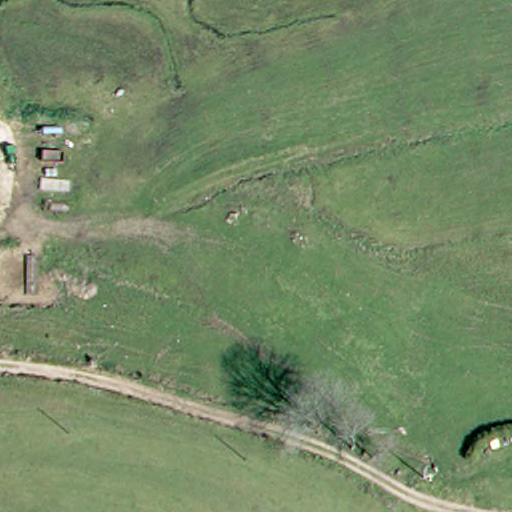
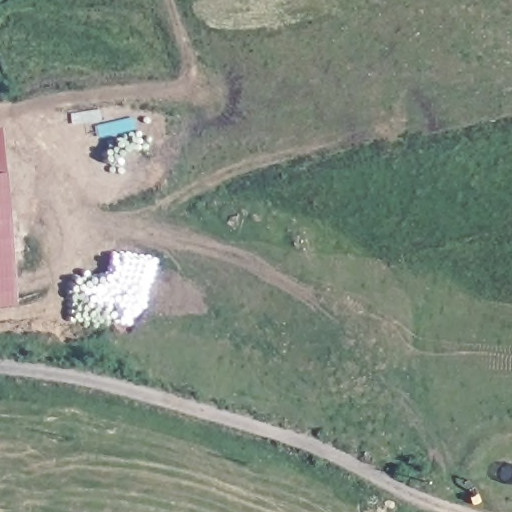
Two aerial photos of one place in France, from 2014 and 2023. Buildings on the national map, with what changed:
new [(17,305),(0,306),(0,142),(17,305)]

